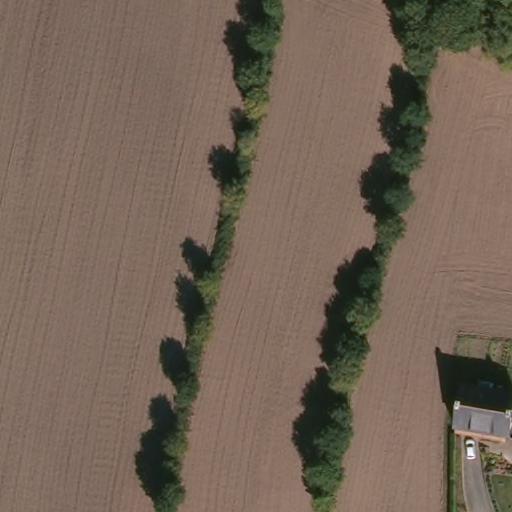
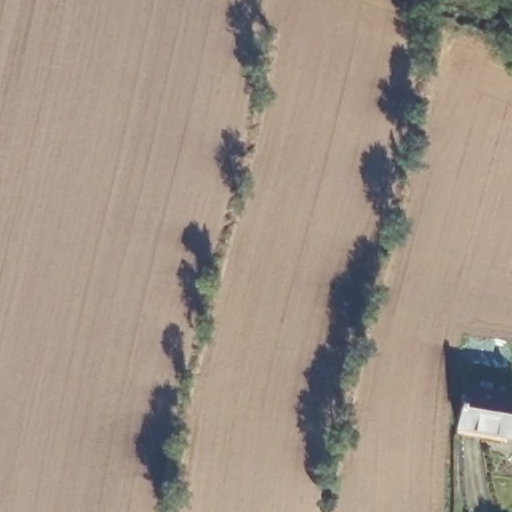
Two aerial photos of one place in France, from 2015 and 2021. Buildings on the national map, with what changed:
unchanged [(512,438),(462,429),(470,388),(512,397),(512,438)]

